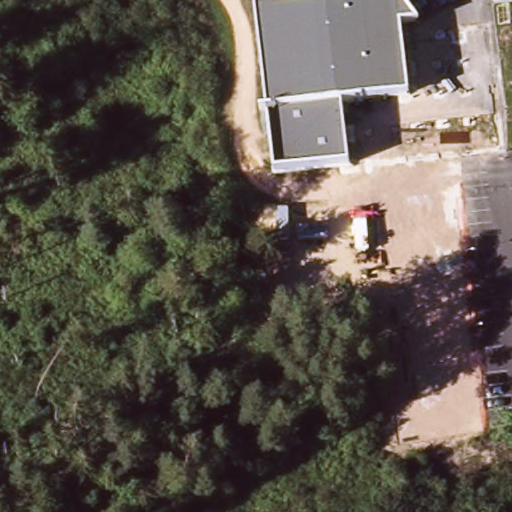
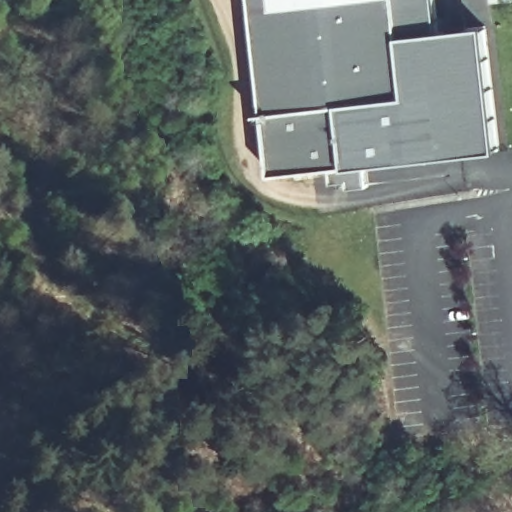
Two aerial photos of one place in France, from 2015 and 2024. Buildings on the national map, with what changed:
unchanged [(417,21),(400,22),(408,95),(338,104),(347,164),(272,174),(250,0),(401,0),(417,21)]
new [(334,166),(347,164),(338,104),(408,95),(400,22),(417,21),(401,0),(434,0),(439,32),(484,26),(500,149),(368,164),(371,186),(352,187),(351,180),(334,182),(334,166)]
unchanged [(488,3),(488,0),(512,0),(512,1),(488,3)]

